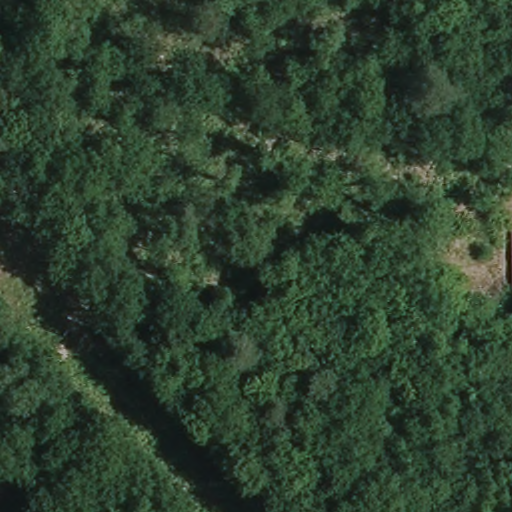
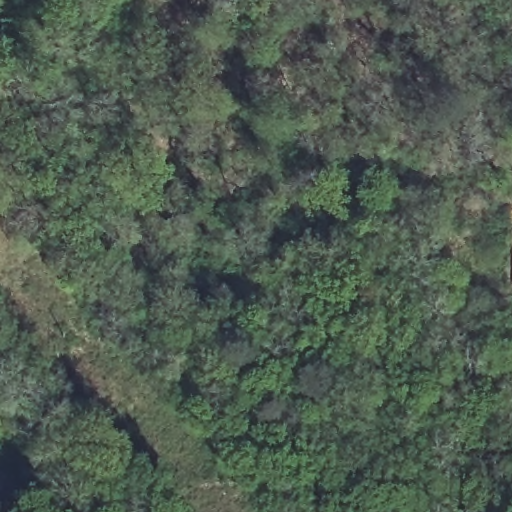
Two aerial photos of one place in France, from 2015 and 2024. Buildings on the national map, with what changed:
unchanged [(512,219),(512,278),(508,219),(512,219)]

